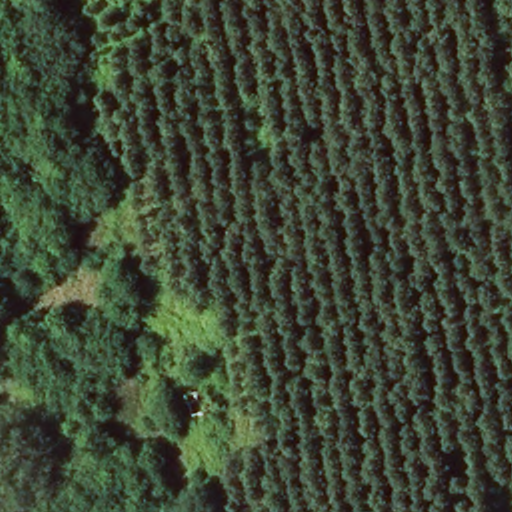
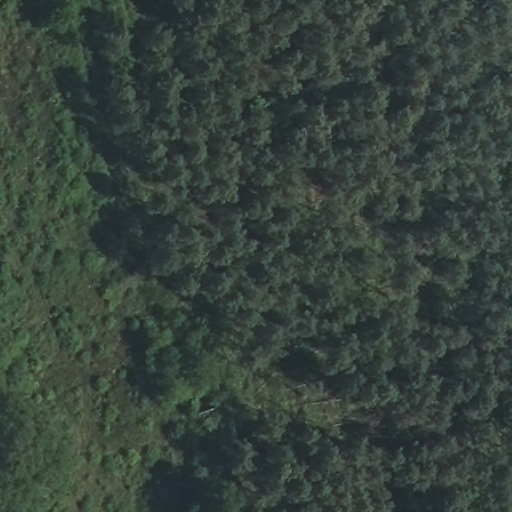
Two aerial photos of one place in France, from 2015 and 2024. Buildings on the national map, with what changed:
unchanged [(210,391),(216,410),(194,417),(188,398),(210,391)]

